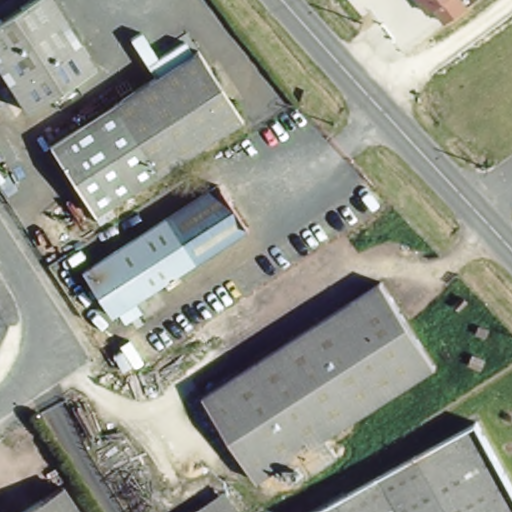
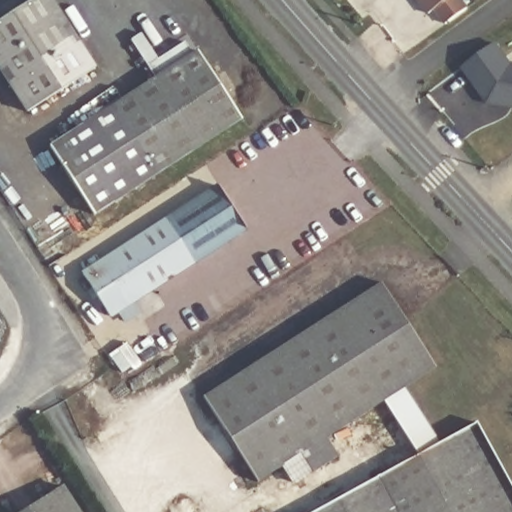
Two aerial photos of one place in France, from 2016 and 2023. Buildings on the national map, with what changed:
unchanged [(51,0),(94,70),(27,111),(0,67),(0,22),(35,0),(51,0)]
unchanged [(419,0),(444,0),(427,10),(419,0)]
new [(488,103),(462,68),(497,41),(512,63),(512,108),(488,103)]
unchanged [(245,118),(91,214),(51,150),(205,54),(245,118)]
unchanged [(245,230),(102,312),(78,269),(220,187),(245,230)]
unchanged [(325,432),(338,454),(292,483),(279,461),(227,379),(382,281),(433,363),(325,432)]
unchanged [(256,476),(255,475),(205,394),(227,379),(279,461),(256,476)]
unchanged [(474,419),(512,489),(512,512),(306,512),(474,419)]
unchanged [(224,486),(240,512),(186,512),(224,486)]
unchanged [(79,512),(32,512),(67,491),(79,512)]

